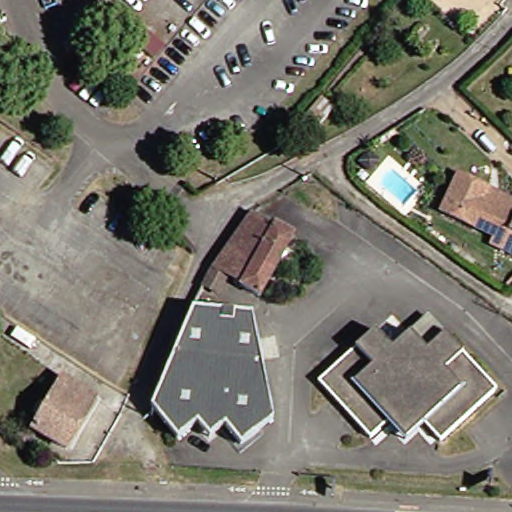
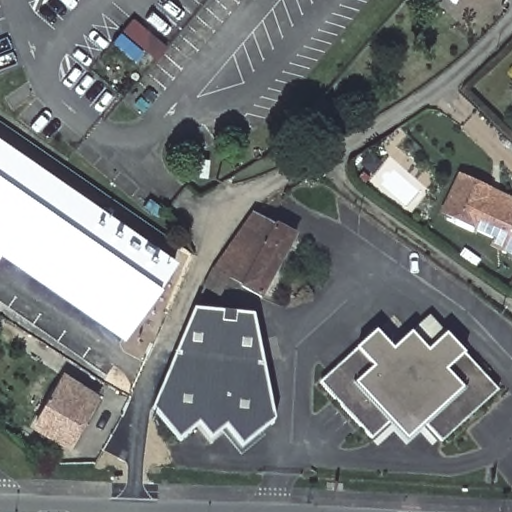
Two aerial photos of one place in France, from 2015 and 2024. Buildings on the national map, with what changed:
unchanged [(328,109),(311,132),(300,121),(318,100),(328,109)]
new [(121,339),(0,251),(0,138),(177,261),(121,339)]
unchanged [(433,212),(451,176),(481,190),(512,205),(512,253),(510,257),(495,250),(484,245),(487,237),(433,212)]
unchanged [(198,289),(208,269),(247,214),(288,236),(255,298),(235,287),(236,284),(226,279),(215,299),(198,289)]
unchanged [(196,440),(187,430),(172,442),(167,446),(136,411),(137,410),(140,413),(140,404),(179,319),(183,309),(242,316),(244,321),(264,421),(232,448),(216,430),(200,444),(196,440)]
unchanged [(383,423),(365,439),(314,383),(370,333),(386,350),(405,333),(421,352),(440,335),(491,391),(434,443),(417,424),(400,440),(383,423)]
unchanged [(59,451),(27,431),(57,382),(89,403),(82,414),(59,451)]

